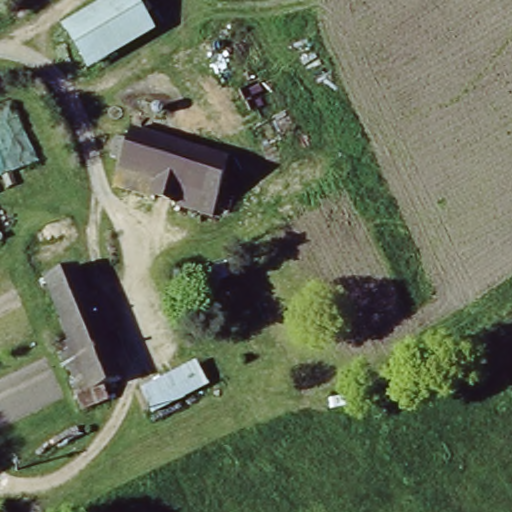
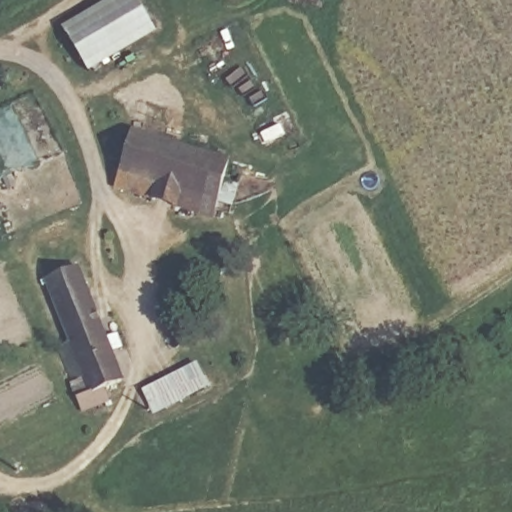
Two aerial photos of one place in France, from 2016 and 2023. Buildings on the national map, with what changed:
unchanged [(59,25),(113,0),(135,0),(154,40),(83,75),(59,25)]
unchanged [(209,203),(205,217),(113,186),(129,135),(233,165),(219,206),(209,203)]
unchanged [(63,327),(48,285),(79,270),(128,389),(114,395),(108,381),(86,390),(81,380),(93,375),(86,360),(75,364),(68,348),(59,330),(63,327)]

